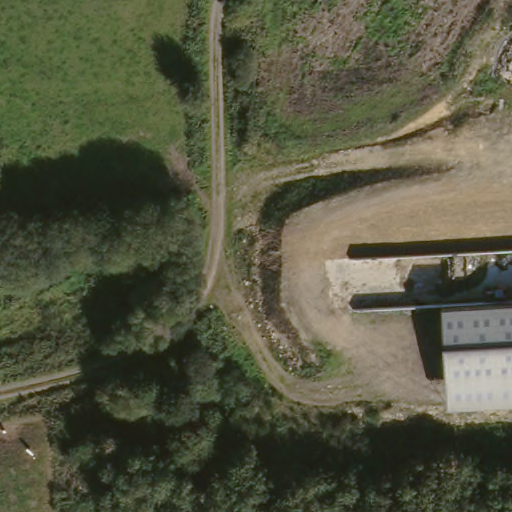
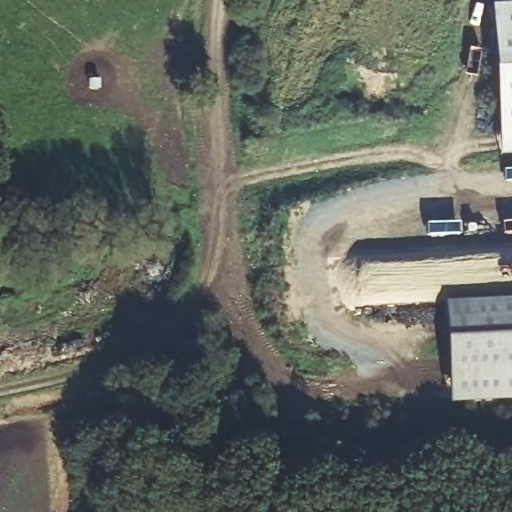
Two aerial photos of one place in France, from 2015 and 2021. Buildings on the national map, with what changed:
new [(512,7),(512,156),(498,156),(491,8),(512,7)]
unchanged [(448,404),(442,306),(512,301),(512,400),(448,404)]

